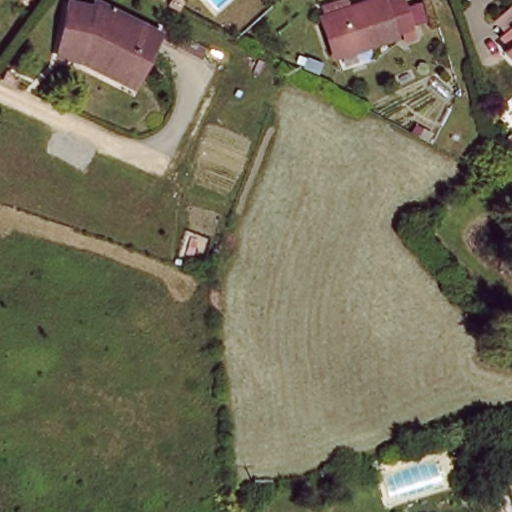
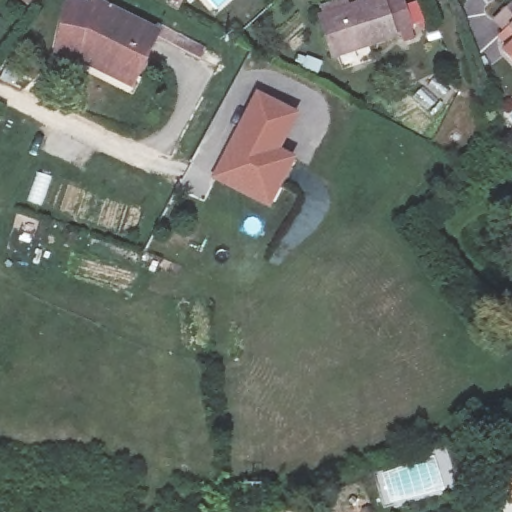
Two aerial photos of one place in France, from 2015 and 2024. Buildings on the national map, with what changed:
unchanged [(86,50),(59,47),(62,2),(95,6),(96,0),(99,0),(159,29),(136,75),(86,50)]
unchanged [(342,54),(331,12),(374,0),(395,0),(406,37),(342,54)]
unchanged [(512,1),(512,43),(491,19),(512,1)]
new [(280,150),(296,158),(269,208),(212,180),(256,92),(300,114),(280,150)]
unchanged [(504,475),(484,480),(480,466),(501,462),(504,475)]

